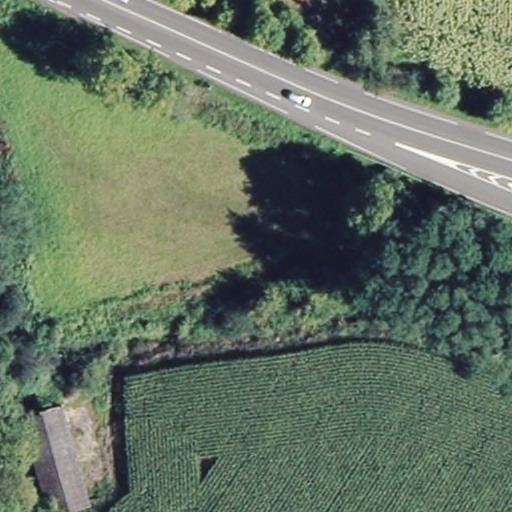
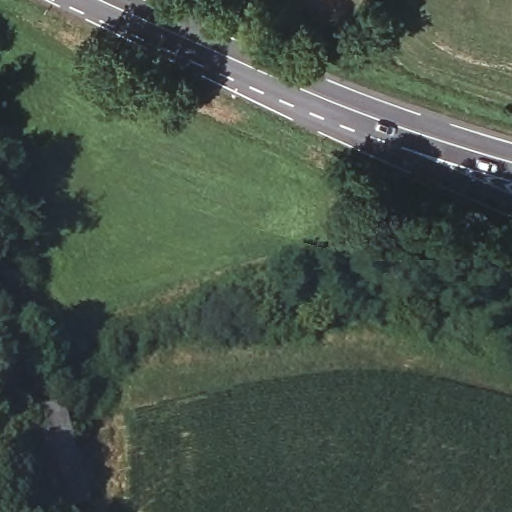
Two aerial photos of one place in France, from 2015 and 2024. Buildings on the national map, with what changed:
unchanged [(63,403),(88,501),(53,511),(26,412),(63,403)]

